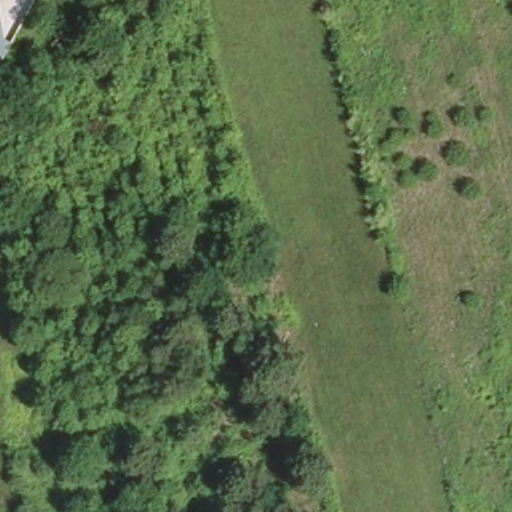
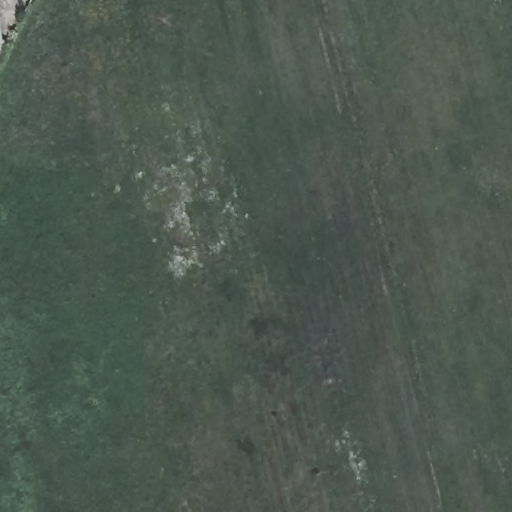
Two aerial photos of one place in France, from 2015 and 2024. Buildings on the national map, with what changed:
unchanged [(0,56),(0,21),(1,29),(2,33),(10,36),(0,56)]

